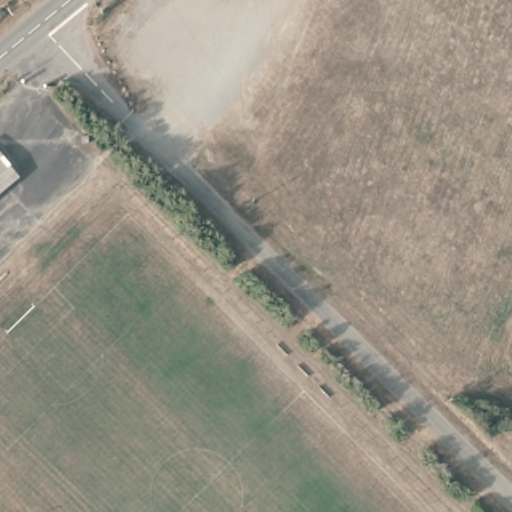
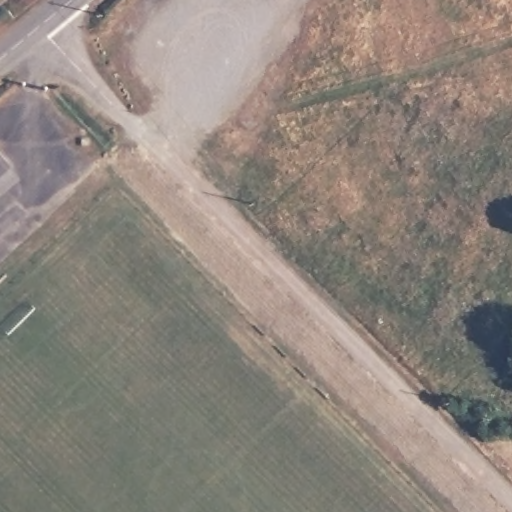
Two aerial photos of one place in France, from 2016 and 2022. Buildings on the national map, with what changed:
unchanged [(14,163),(11,165),(0,175),(0,147),(14,163)]
unchanged [(20,177),(0,194),(0,175),(11,165),(20,177)]

